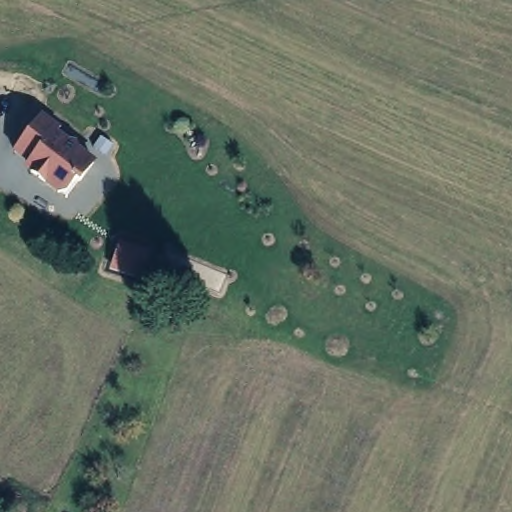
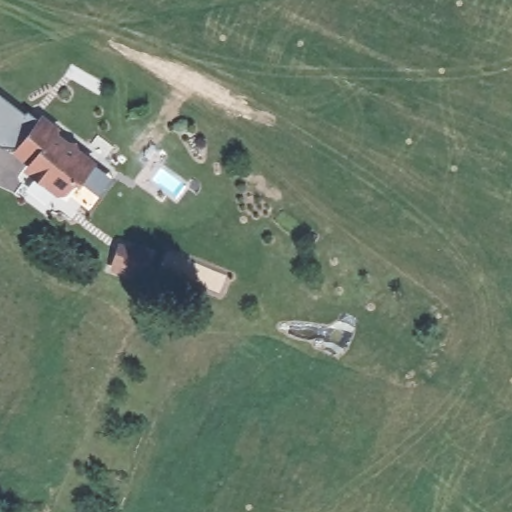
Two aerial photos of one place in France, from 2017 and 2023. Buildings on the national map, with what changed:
unchanged [(58,126),(55,130),(95,160),(67,199),(23,170),(27,164),(11,154),(40,114),(58,126)]

